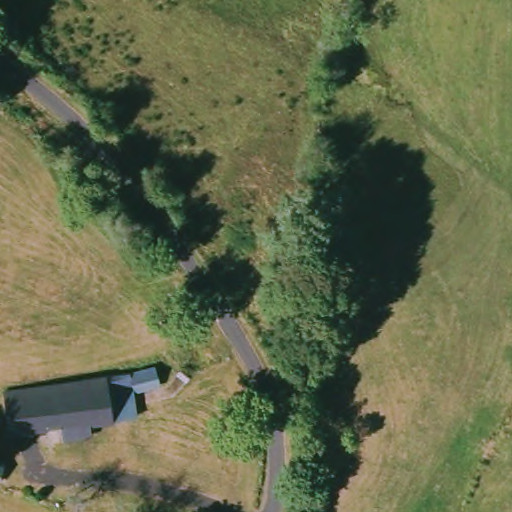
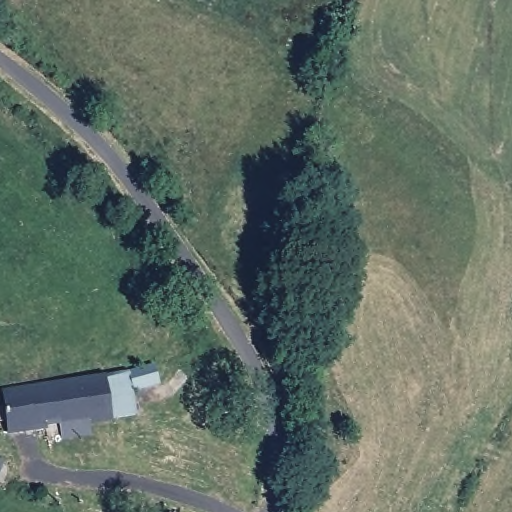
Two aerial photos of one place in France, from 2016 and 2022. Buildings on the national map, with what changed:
unchanged [(87,420),(87,432),(58,437),(55,425),(5,431),(0,389),(126,369),(150,363),(155,382),(128,387),(132,413),(87,420)]

